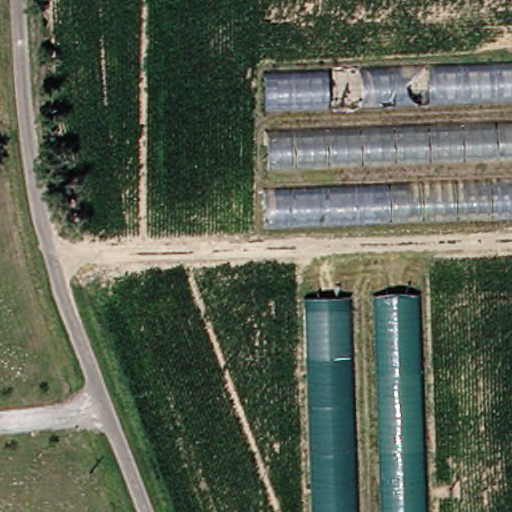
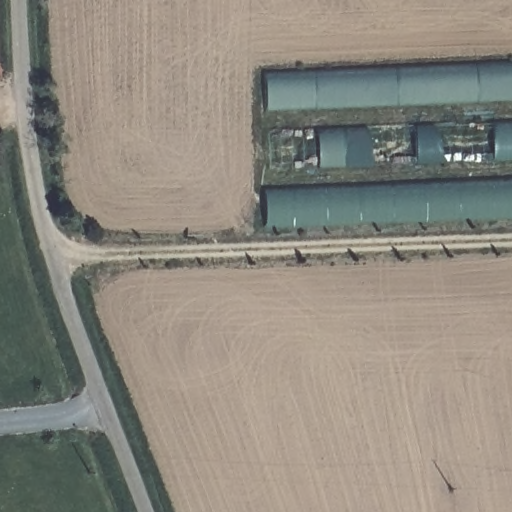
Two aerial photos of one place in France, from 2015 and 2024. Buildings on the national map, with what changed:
unchanged [(255,69),(512,60),(512,214),(257,225),(255,69)]
demolished [(417,294),(425,512),(384,512),(376,294),(417,294)]
demolished [(345,512),(299,512),(293,297),(337,295),(345,512)]

